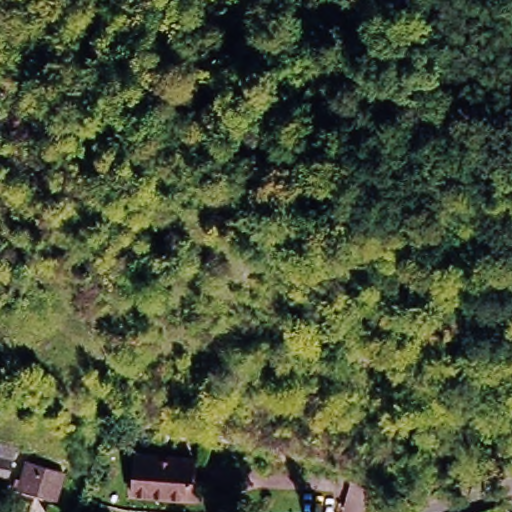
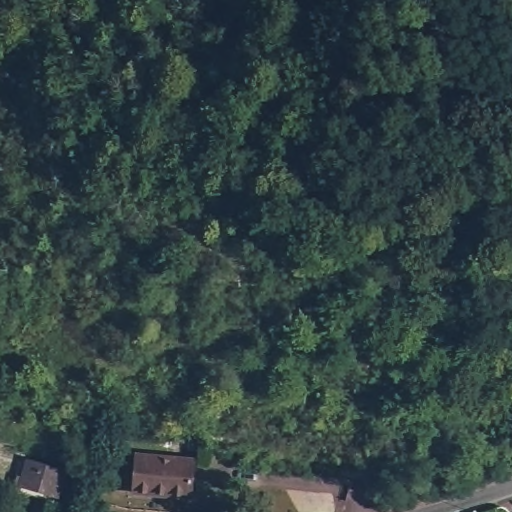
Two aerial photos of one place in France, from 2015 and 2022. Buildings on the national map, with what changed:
unchanged [(190,499),(134,491),(140,451),(195,461),(190,499)]
unchanged [(55,501),(13,486),(17,473),(23,475),(28,459),(65,472),(55,501)]

